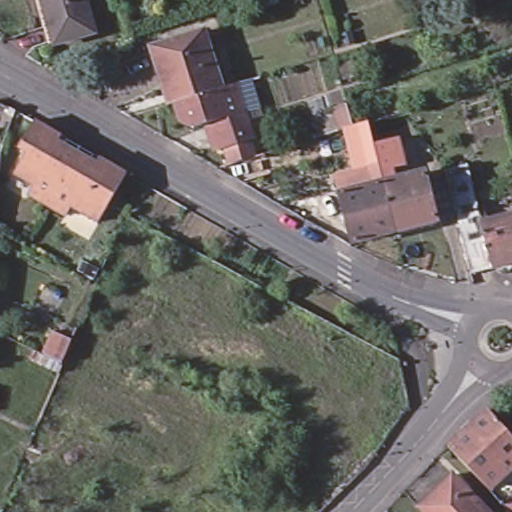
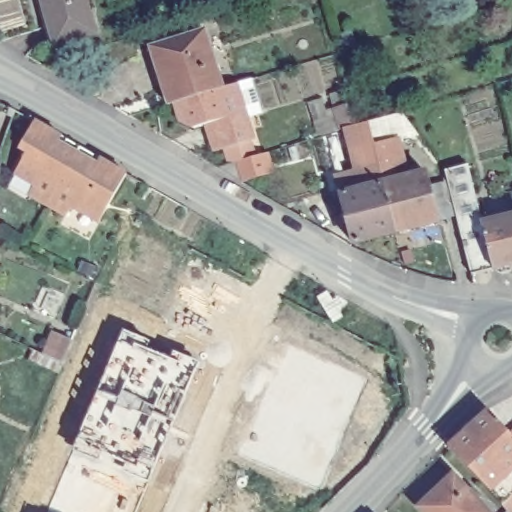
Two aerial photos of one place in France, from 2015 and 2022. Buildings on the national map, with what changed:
unchanged [(40,0),(82,0),(92,32),(54,43),(40,0)]
unchanged [(155,72),(151,74),(143,49),(197,34),(215,89),(167,104),(155,72)]
unchanged [(220,150),(215,152),(207,154),(198,125),(188,129),(173,124),(167,104),(215,89),(220,87),(230,84),(243,80),(252,110),(238,114),(240,120),(247,142),(242,143),(247,158),(225,165),(220,150)]
unchanged [(62,136),(60,142),(67,146),(70,141),(83,149),(50,207),(32,197),(37,187),(17,176),(30,154),(22,149),(37,122),(62,136)]
unchanged [(341,200),(337,187),(361,181),(350,133),(362,129),(368,152),(393,146),(396,157),(400,156),(402,162),(397,164),(400,173),(375,178),(378,190),(423,179),(435,227),(391,239),(350,249),(338,200),(341,200)]
unchanged [(83,149),(97,156),(94,162),(100,165),(103,160),(128,175),(101,223),(75,208),(70,217),(50,207),(83,149)]
unchanged [(492,270),(473,275),(447,171),(468,164),(483,223),(492,270)]
unchanged [(496,269),(492,270),(483,223),(512,217),(512,272),(502,274),(496,269)]
new [(147,350),(170,359),(173,350),(199,361),(137,512),(45,512),(122,329),(150,339),(147,350)]
unchanged [(449,445),(490,411),(512,437),(512,472),(507,476),(512,482),(512,512),(505,512),(488,493),(449,445)]
unchanged [(428,512),(425,509),(459,479),(487,512),(428,512)]

